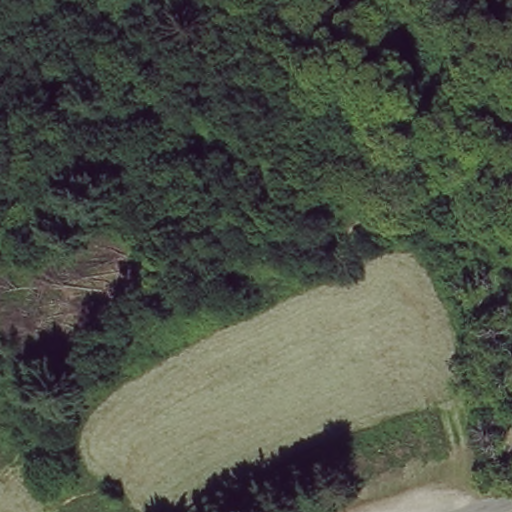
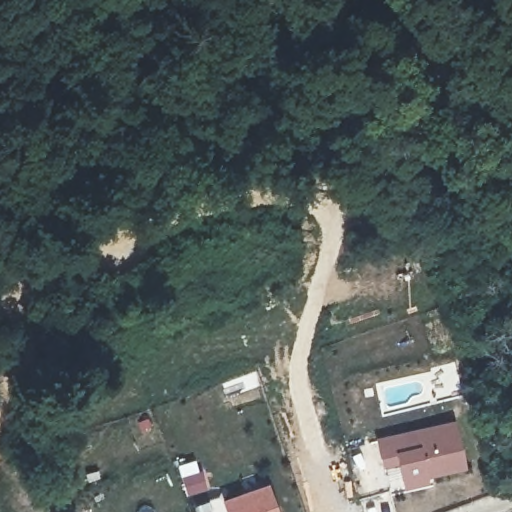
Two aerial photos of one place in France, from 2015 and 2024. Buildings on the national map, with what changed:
new [(453,419),(467,468),(428,477),(429,483),(403,489),(397,462),(383,468),(375,437),(453,419)]
new [(277,512),(226,512),(221,499),(266,483),(277,512)]

